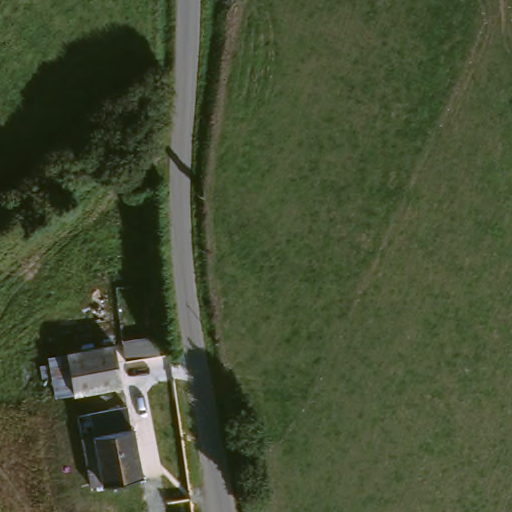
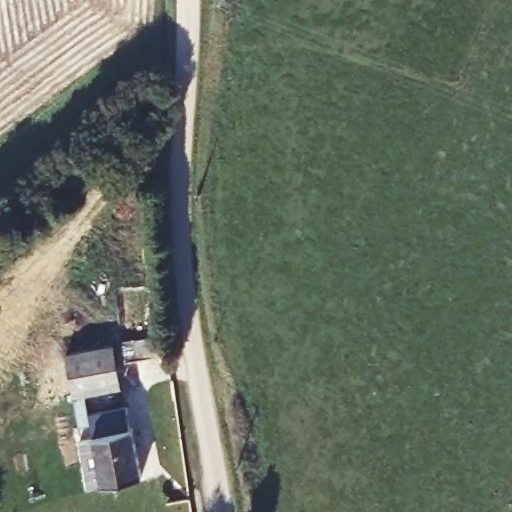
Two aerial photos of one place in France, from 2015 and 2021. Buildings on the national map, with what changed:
unchanged [(70,359),(115,351),(122,392),(77,399),(70,359)]
unchanged [(81,425),(132,415),(144,484),(92,493),(81,425)]

